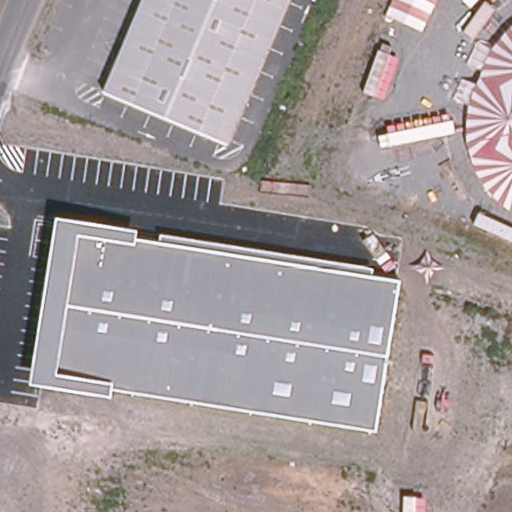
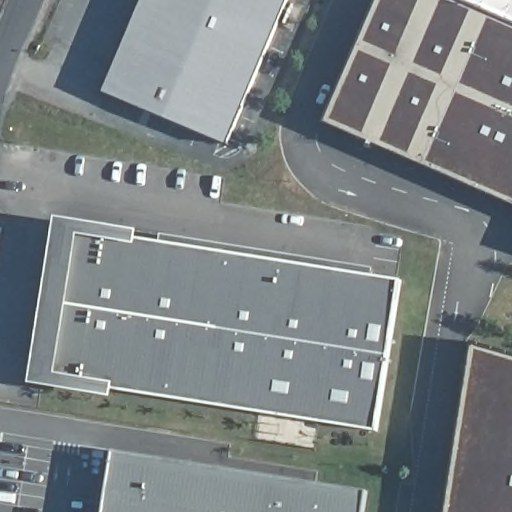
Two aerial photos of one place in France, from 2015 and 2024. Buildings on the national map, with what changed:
unchanged [(104,88),(141,0),(287,0),(228,140),(104,88)]
new [(325,124),(380,0),(464,0),(512,21),(512,205),(325,124)]
unchanged [(376,431),(113,390),(111,398),(31,386),(58,220),(138,231),(136,240),(159,244),(160,235),(373,269),(372,276),(400,281),(376,431)]
new [(473,342),(512,354),(512,512),(446,512),(473,342)]
new [(111,451),(366,491),(362,512),(102,512),(111,451)]

